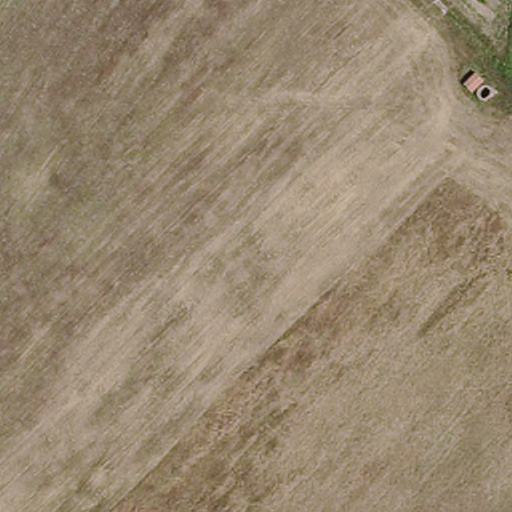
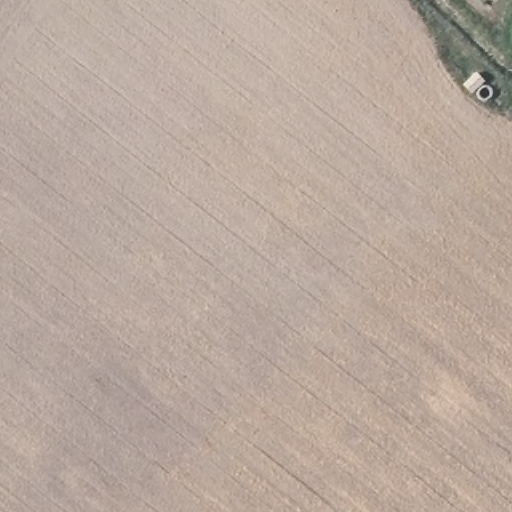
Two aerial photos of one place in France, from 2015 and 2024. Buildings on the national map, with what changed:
unchanged [(484,82),(472,92),(465,82),(475,73),(484,82)]

